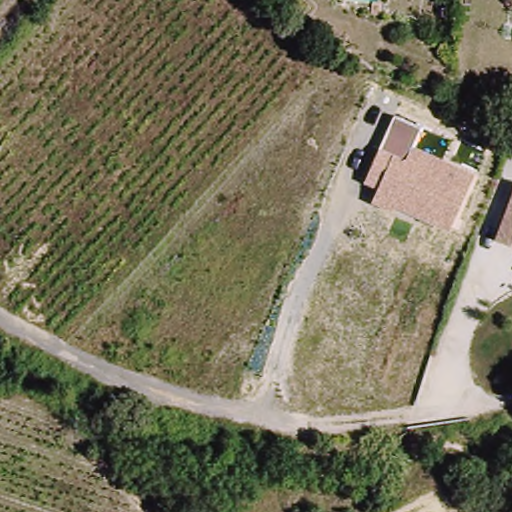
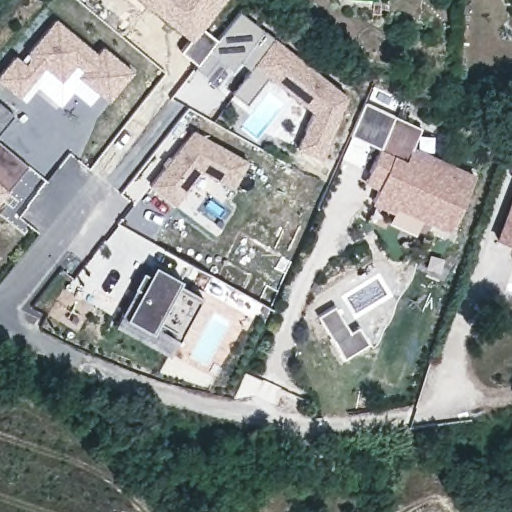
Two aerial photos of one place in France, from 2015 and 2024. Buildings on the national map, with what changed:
new [(212,51),(209,50),(197,65),(181,53),(190,42),(138,0),(225,0),(202,29),(218,42),(212,51)]
new [(296,147),(312,111),(268,76),(246,104),(234,93),(253,70),(241,59),(234,67),(212,51),(241,12),(347,94),(320,159),(296,147)]
new [(34,90),(23,103),(0,84),(0,76),(14,59),(27,68),(36,57),(29,52),(56,20),(99,56),(104,49),(133,72),(109,101),(99,94),(88,107),(71,95),(59,109),(34,90)]
new [(14,114),(0,130),(0,102),(14,114)]
unchanged [(394,207),(391,212),(372,203),(380,189),(365,182),(396,117),(421,129),(413,146),(476,174),(450,231),(394,207)]
new [(151,183),(193,132),(247,160),(234,185),(202,169),(175,202),(151,183)]
new [(28,166),(0,199),(0,145),(28,166)]
unchanged [(512,205),(512,242),(501,239),(512,205)]
new [(137,294),(131,291),(139,275),(145,277),(150,268),(178,282),(175,287),(197,299),(176,341),(160,333),(163,328),(156,325),(150,337),(122,322),(137,294)]

